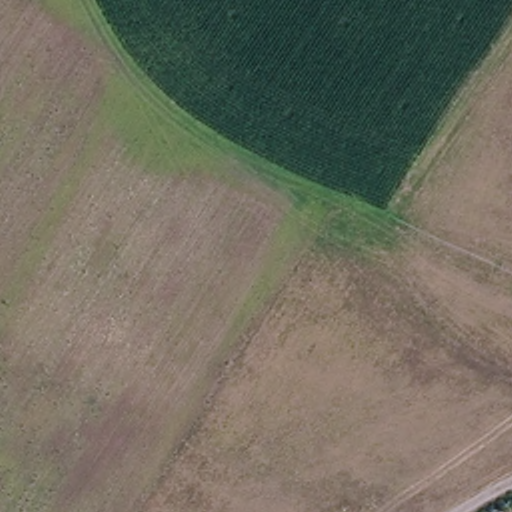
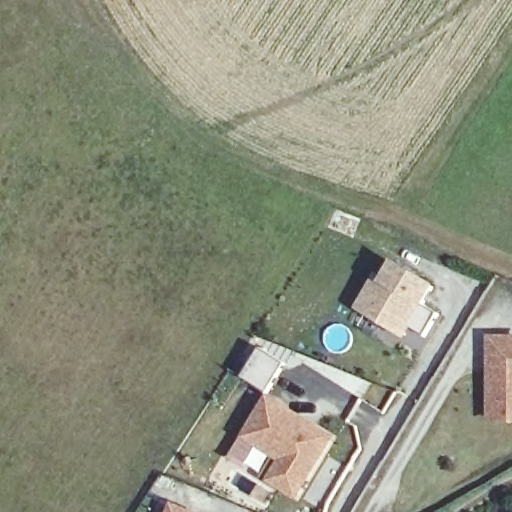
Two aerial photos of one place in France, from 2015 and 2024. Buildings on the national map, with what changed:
new [(386,278),(395,260),(439,286),(427,305),(442,313),(427,337),(413,330),(407,339),(355,311),(379,274),(386,278)]
new [(512,421),(495,420),(490,349),(512,347),(512,421)]
new [(338,436),(299,501),(266,484),(280,459),(243,438),(270,395),(338,436)]
new [(169,512),(172,503),(196,512),(169,512)]

